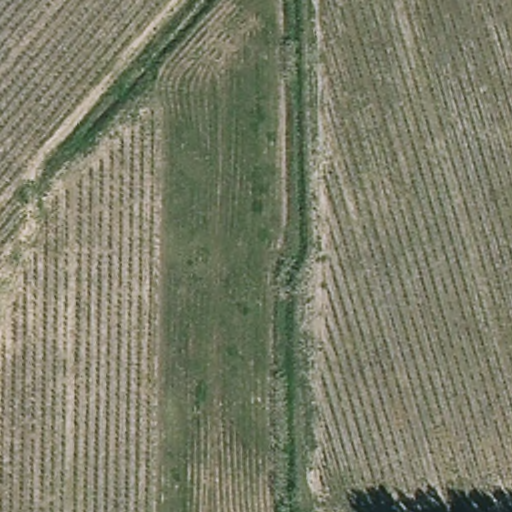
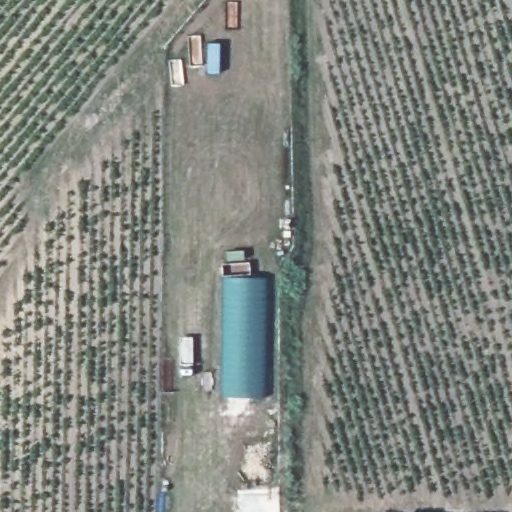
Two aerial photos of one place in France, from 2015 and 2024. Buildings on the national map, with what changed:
new [(266,277),(263,397),(221,394),(221,275),(266,277)]

